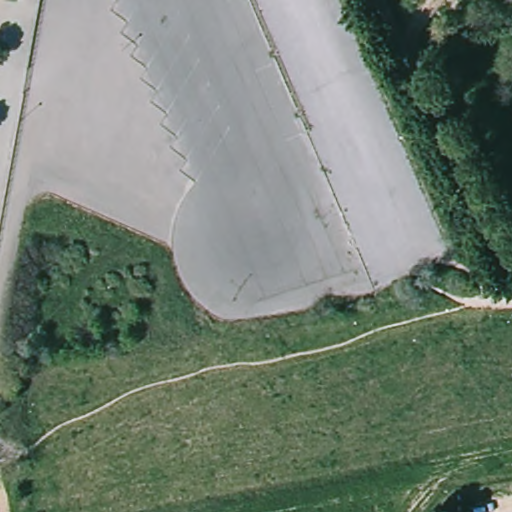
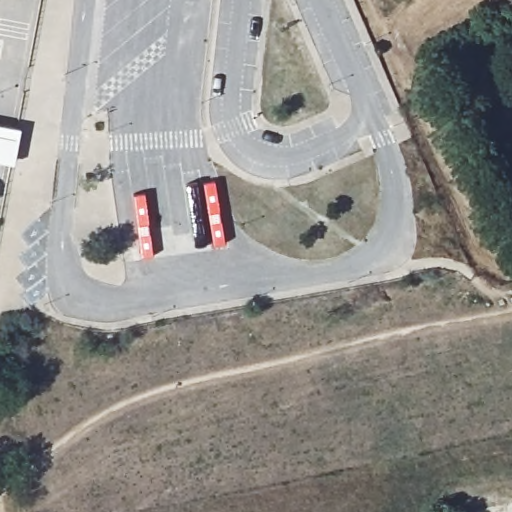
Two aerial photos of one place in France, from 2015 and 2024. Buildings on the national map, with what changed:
new [(14,164),(0,161),(0,124),(21,128),(14,164)]

